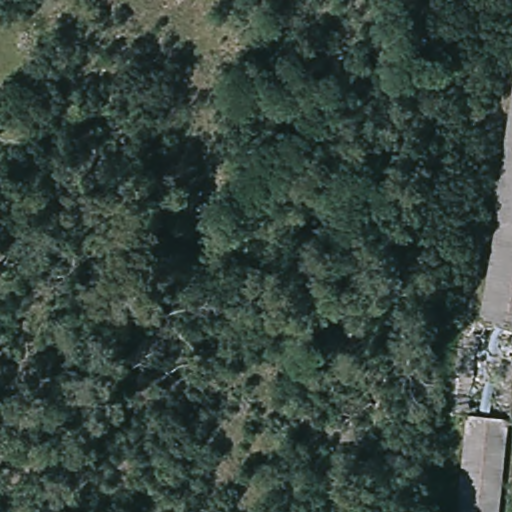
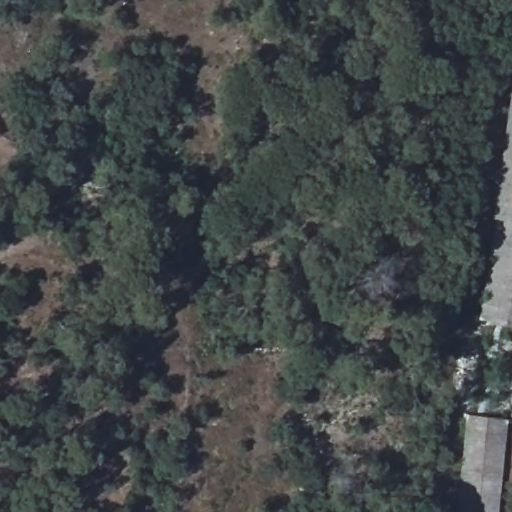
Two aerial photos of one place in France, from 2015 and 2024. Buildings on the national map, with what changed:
unchanged [(0,136),(0,128),(4,134),(0,136)]
unchanged [(512,147),(512,229),(502,228),(512,147)]
unchanged [(475,396),(497,228),(502,228),(512,229),(512,422),(472,416),(475,396)]
unchanged [(512,422),(512,509),(511,512),(457,512),(472,416),(512,422)]

